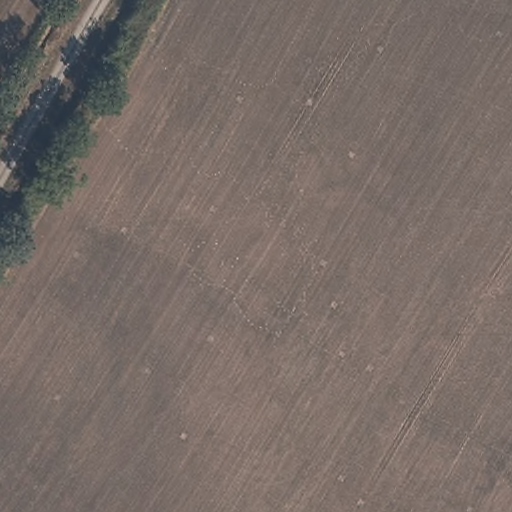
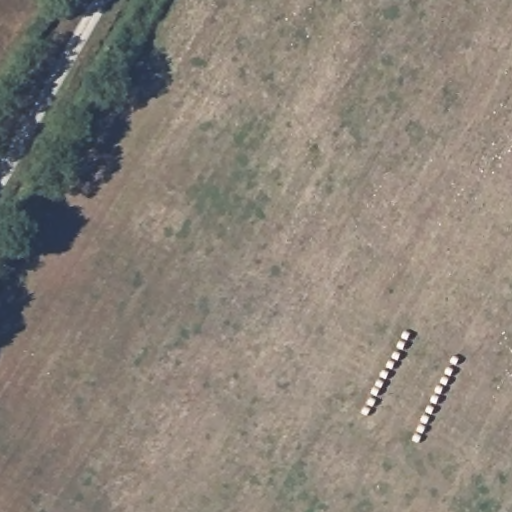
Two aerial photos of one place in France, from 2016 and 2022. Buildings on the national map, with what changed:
[]

